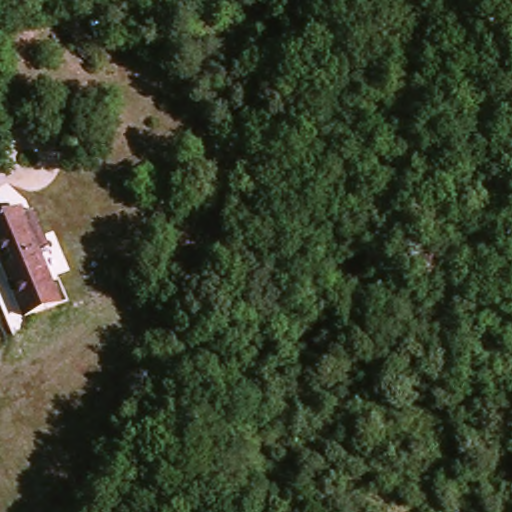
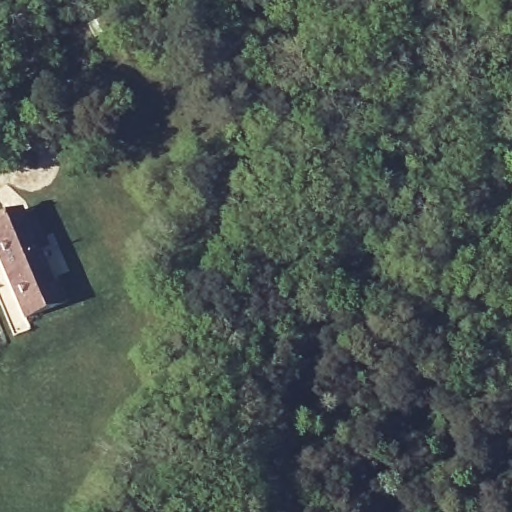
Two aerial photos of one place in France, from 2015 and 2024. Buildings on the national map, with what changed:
unchanged [(0,262),(0,219),(21,210),(59,305),(23,319),(0,262)]

